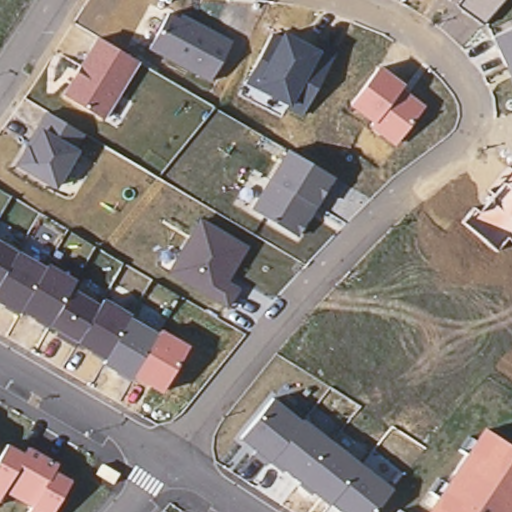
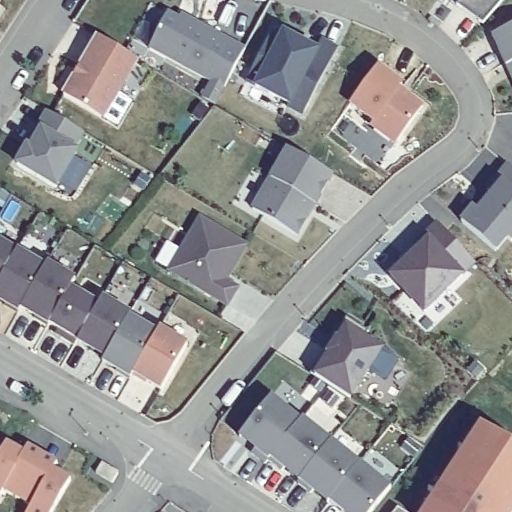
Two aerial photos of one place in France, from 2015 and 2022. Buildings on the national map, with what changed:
new [(0,0),(4,0),(0,6),(0,0)]
unchanged [(456,6),(460,0),(504,0),(483,26),(456,6)]
unchanged [(170,11),(185,17),(187,14),(234,38),(211,81),(149,49),(170,11)]
unchanged [(494,38),(512,29),(512,80),(494,38)]
unchanged [(280,36),(282,31),(313,46),(317,41),(338,50),(305,118),(287,111),(290,106),(243,83),(270,32),(280,36)]
unchanged [(138,61),(105,120),(63,95),(97,37),(138,61)]
unchanged [(407,83),(403,87),(425,105),(397,146),(369,129),(373,123),(348,105),(380,64),(407,83)]
unchanged [(85,134),(78,149),(56,190),(16,166),(26,146),(45,112),(85,134)]
unchanged [(333,177),(300,239),(252,211),(285,149),(333,177)]
unchanged [(512,170),(512,242),(507,239),(495,253),(460,224),(474,207),(478,211),(492,194),(485,188),(505,165),(512,170)]
unchanged [(248,246),(230,283),(240,288),(228,309),(170,275),(200,219),(248,246)]
new [(476,263),(423,311),(385,272),(430,233),(427,230),(435,220),(476,263)]
unchanged [(49,263),(75,278),(72,287),(99,302),(102,298),(132,313),(130,317),(158,333),(162,328),(190,344),(160,391),(135,377),(132,381),(102,366),(104,361),(22,311),(19,314),(0,303),(0,241),(47,267),(49,263)]
new [(385,344),(382,348),(398,357),(387,381),(369,370),(353,395),(313,371),(345,320),(385,344)]
unchanged [(302,420),(269,462),(238,438),(274,398),(302,420)]
unchanged [(480,428),(512,449),(512,512),(424,512),(480,428)]
unchanged [(25,454),(29,450),(58,465),(56,472),(70,480),(51,512),(28,512),(30,507),(2,492),(0,495),(0,457),(7,445),(25,454)]
unchanged [(390,489),(372,512),(342,512),(330,503),(360,464),(390,489)]
unchanged [(398,510),(401,512),(397,512),(398,510)]

